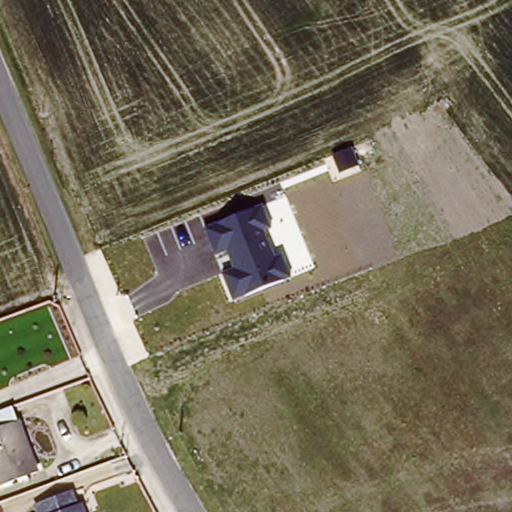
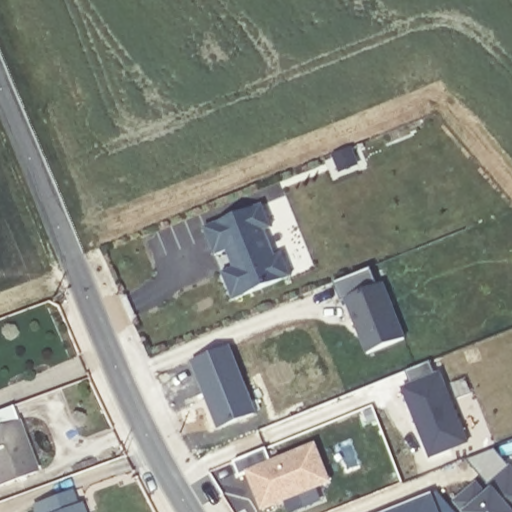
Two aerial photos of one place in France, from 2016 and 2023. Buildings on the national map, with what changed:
unchanged [(272,228),(267,231),(275,256),(282,252),(292,277),(236,301),(225,275),(235,271),(229,254),(218,257),(206,227),(262,203),(272,228)]
new [(367,268),(375,286),(379,285),(401,340),(364,355),(342,300),(338,302),(330,283),(367,268)]
new [(226,346),(252,413),(216,427),(210,411),(213,410),(205,389),(202,391),(190,361),(226,346)]
new [(408,388),(403,374),(428,364),(434,378),(438,377),(465,446),(427,461),(400,391),(408,388)]
unchanged [(0,490),(0,415),(12,411),(36,477),(0,490)]
new [(263,451),(268,464),(312,447),(327,483),(260,510),(245,475),(237,478),(231,463),(263,451)]
new [(483,498),(489,493),(485,488),(507,470),(512,475),(512,512),(458,512),(452,505),(473,487),(483,498)]
unchanged [(43,504),(73,493),(78,508),(85,506),(87,512),(47,512),(43,504)]
new [(427,496),(433,512),(385,512),(427,496)]

